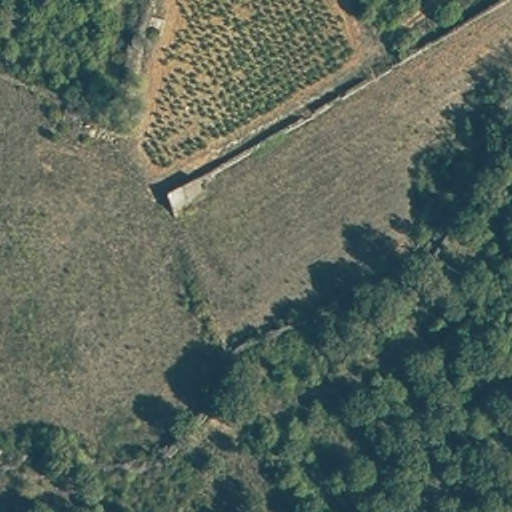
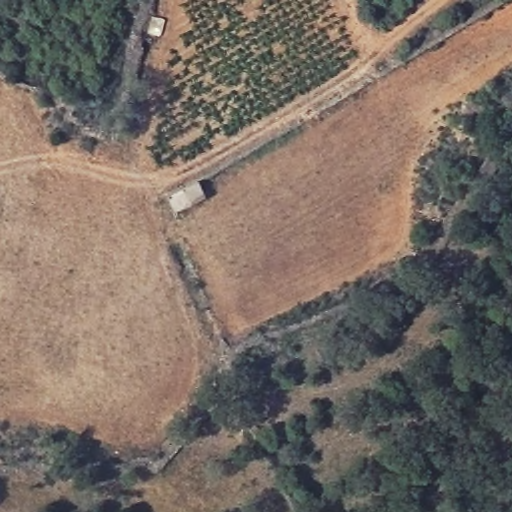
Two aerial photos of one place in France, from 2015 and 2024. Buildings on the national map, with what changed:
unchanged [(193,172),(206,197),(173,214),(161,189),(193,172)]

